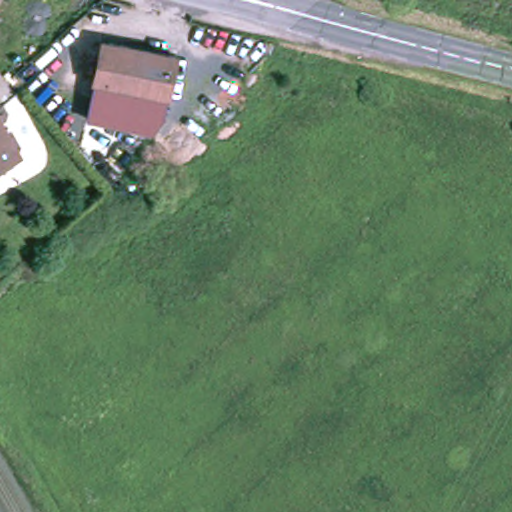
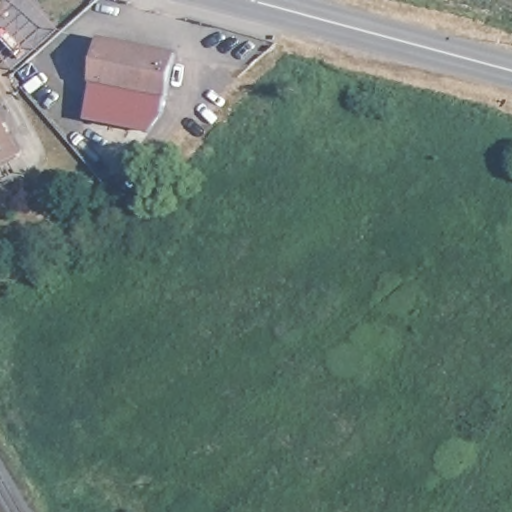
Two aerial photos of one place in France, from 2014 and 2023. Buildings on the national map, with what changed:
unchanged [(150,134),(86,121),(103,40),(177,55),(164,115),(150,134)]
unchanged [(25,155),(0,169),(0,108),(25,155)]

